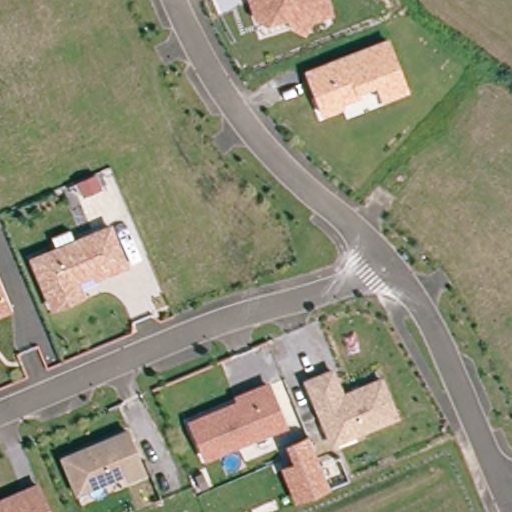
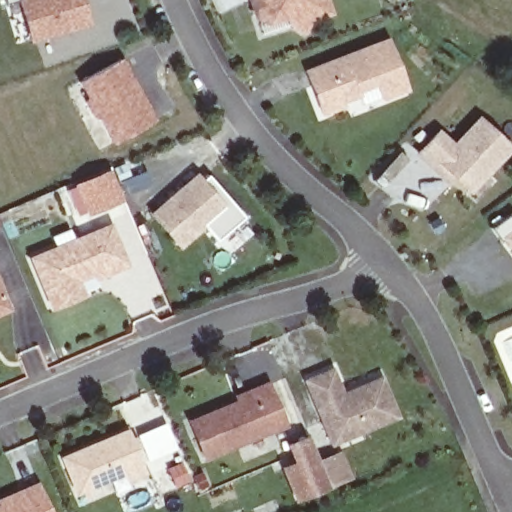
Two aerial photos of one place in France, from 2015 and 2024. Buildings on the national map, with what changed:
new [(31,43),(18,0),(83,0),(90,25),(31,43)]
unchanged [(304,35),(289,28),(287,20),(268,24),(253,18),(247,0),(328,0),(333,15),(313,21),(304,35)]
unchanged [(388,39),(411,92),(383,105),(377,88),(342,103),(344,109),(323,119),(303,71),(388,39)]
new [(157,119),(113,144),(100,118),(92,118),(83,103),(86,96),(79,81),(124,59),(157,119)]
new [(436,173),(420,158),(438,137),(455,152),(480,124),(510,150),(471,194),(452,178),(447,183),(436,173)]
new [(125,200),(85,218),(71,185),(111,168),(117,184),(146,172),(151,184),(122,195),(125,200)]
new [(199,179),(226,209),(182,248),(155,217),(199,179)]
new [(512,216),(512,250),(506,243),(502,245),(492,233),(512,216)]
unchanged [(0,234),(0,222),(2,222),(7,231),(0,234)]
unchanged [(97,271),(80,279),(86,294),(56,307),(36,258),(112,225),(129,264),(109,272),(100,276),(97,271)]
unchanged [(0,313),(0,282),(11,309),(0,313)]
unchanged [(331,434),(306,376),(331,365),(342,389),(380,374),(395,411),(362,424),(332,438),(331,434)]
unchanged [(190,422),(237,402),(254,395),(252,390),(267,384),(278,411),(284,424),(270,430),(205,457),(190,422)]
unchanged [(132,482),(129,474),(80,495),(65,459),(130,432),(144,465),(147,474),(132,482)]
unchanged [(291,462),(284,444),(307,434),(329,489),(293,503),(280,467),(291,462)]
unchanged [(0,506),(1,506),(0,503),(0,501),(22,491),(37,484),(49,511),(49,512),(0,512),(0,506)]

